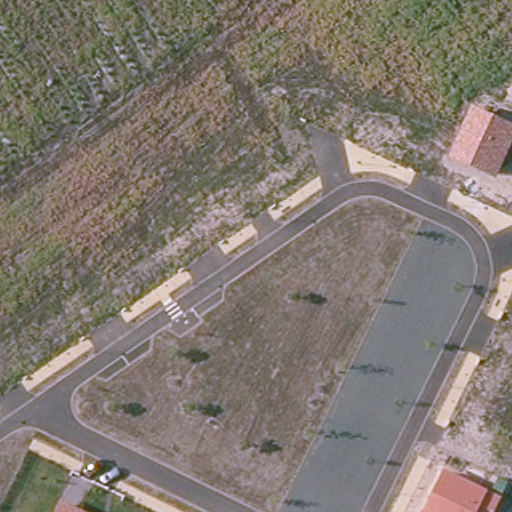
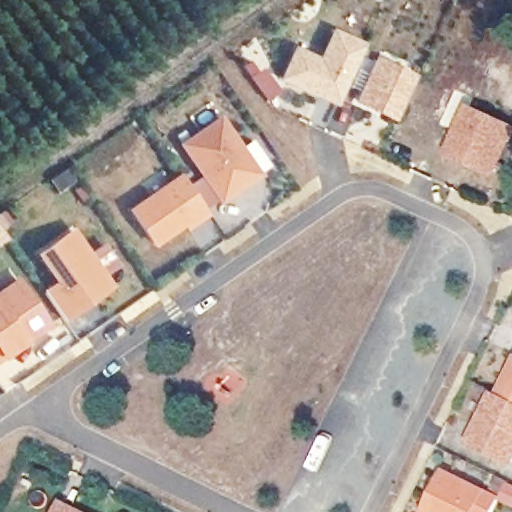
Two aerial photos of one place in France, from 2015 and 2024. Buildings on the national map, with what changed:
new [(283,81),(295,53),(320,64),(334,35),(363,49),(337,106),(322,98),(316,95),(283,81)]
new [(376,56),(418,75),(396,122),(354,103),(376,56)]
new [(260,64),(277,89),(263,100),(245,75),(260,64)]
unchanged [(445,161),(467,110),(512,130),(512,141),(494,182),(445,161)]
unchanged [(220,123),(258,179),(221,205),(183,147),(220,123)]
new [(181,180),(208,218),(194,228),(191,224),(155,249),(131,212),(181,180)]
new [(204,180),(220,204),(206,213),(190,190),(204,180)]
new [(80,314),(65,325),(46,294),(60,284),(41,256),(74,233),(109,285),(112,291),(80,314)]
new [(0,296),(20,282),(51,331),(26,349),(6,359),(0,363),(0,296)]
new [(512,365),(512,397),(499,391),(512,365)]
new [(493,389),(499,391),(512,397),(512,457),(511,460),(469,439),(493,389)]
unchanged [(501,497),(494,512),(423,512),(442,470),(501,497)]
unchanged [(94,512),(53,512),(60,496),(94,512)]

